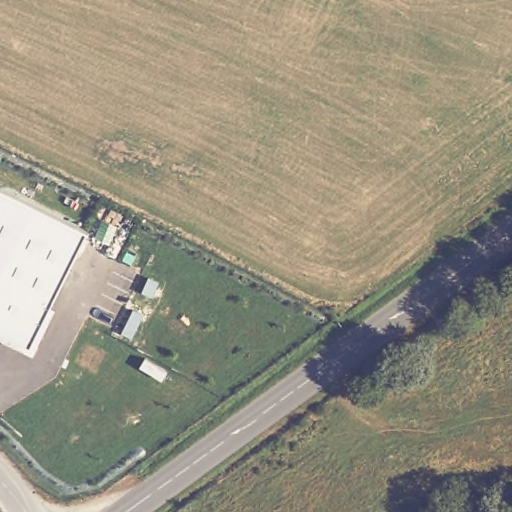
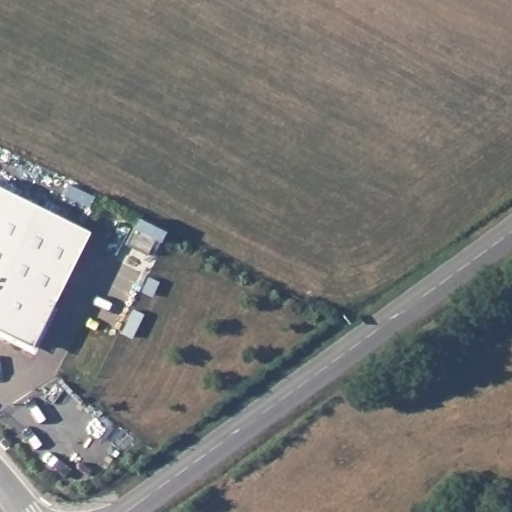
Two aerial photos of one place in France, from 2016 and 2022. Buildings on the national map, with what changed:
unchanged [(88,229),(53,305),(58,307),(35,350),(0,333),(0,187),(88,229)]

